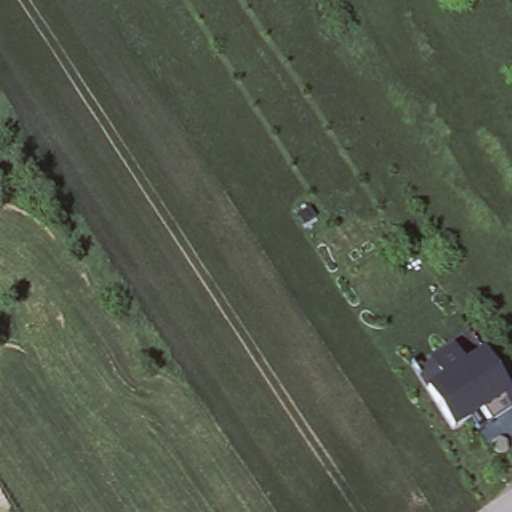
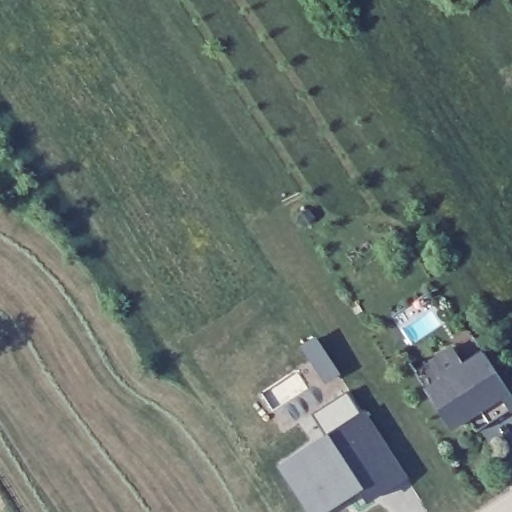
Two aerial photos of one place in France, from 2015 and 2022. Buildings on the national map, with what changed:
unchanged [(430,385),(445,375),(434,358),(451,347),(455,344),(466,362),(486,349),(512,388),(512,405),(496,416),(491,419),(474,392),(462,399),(472,414),(455,424),(430,385)]
new [(283,466),(316,444),(319,448),(331,440),(328,436),(366,412),(407,476),(370,499),(360,485),(345,495),(349,501),(346,502),(344,499),(339,502),(337,500),(331,504),(332,506),(323,512),(314,512),(283,466)]

